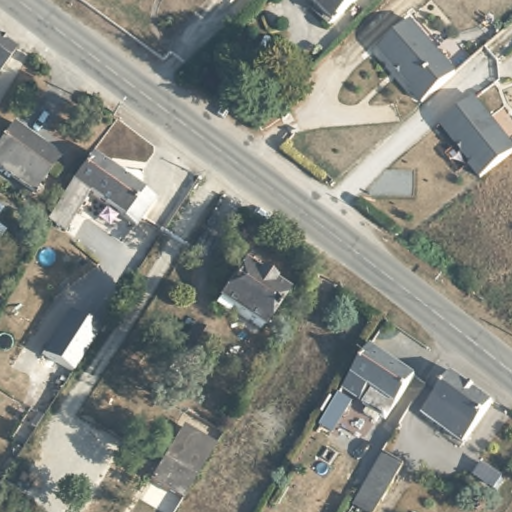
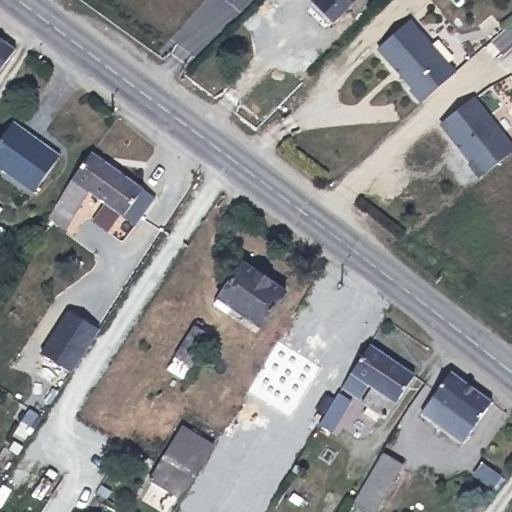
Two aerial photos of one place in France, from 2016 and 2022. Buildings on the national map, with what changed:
unchanged [(307,5),(311,0),(356,0),(328,26),(307,5)]
unchanged [(423,100),(413,87),(415,85),(380,46),(410,18),(458,70),(423,100)]
unchanged [(14,49),(0,68),(0,37),(14,49)]
unchanged [(469,167),(471,164),(461,153),(462,148),(458,145),(456,147),(440,127),(473,100),(512,148),(512,154),(480,179),(469,167)]
unchanged [(0,167),(0,137),(11,121),(59,156),(33,191),(0,167)]
unchanged [(154,193),(135,218),(128,215),(120,225),(100,210),(107,201),(87,186),(70,215),(54,203),(69,175),(90,146),(154,193)]
unchanged [(228,306),(224,309),(213,301),(241,259),(283,289),(256,327),(228,306)]
unchanged [(81,352),(69,371),(40,352),(67,309),(97,328),(81,352)]
unchanged [(201,322),(198,326),(208,333),(190,364),(184,361),(177,371),(168,365),(175,355),(173,354),(195,318),(201,322)]
unchanged [(383,409),(379,415),(366,406),(370,400),(365,397),(375,380),(372,378),(363,392),(347,381),(374,338),(416,369),(388,412),(383,409)]
unchanged [(421,410),(449,370),(491,398),(461,439),(421,410)]
unchanged [(319,399),(328,385),(337,391),(328,406),(319,399)]
unchanged [(343,388),(355,396),(337,425),(324,418),(343,388)]
unchanged [(180,497),(149,477),(181,426),(212,444),(180,497)]
unchanged [(364,512),(348,503),(374,459),(378,452),(400,465),(372,512),(364,512)]
unchanged [(290,469),(293,464),(297,467),(294,471),(290,469)]

